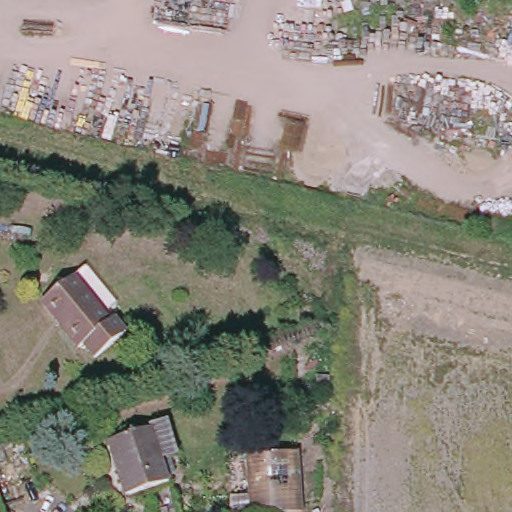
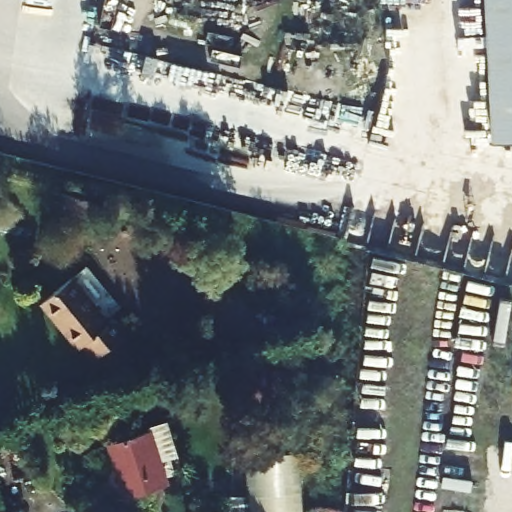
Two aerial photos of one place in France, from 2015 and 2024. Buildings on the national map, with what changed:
new [(488,0),(512,0),(512,139),(495,140),(488,0)]
unchanged [(92,199),(87,226),(51,219),(57,191),(92,199)]
unchanged [(75,276),(112,319),(116,315),(128,328),(95,357),(83,344),(77,349),(40,306),(75,276)]
unchanged [(166,427),(177,457),(158,464),(166,487),(126,500),(108,447),(147,434),(166,427)]
unchanged [(296,512),(223,512),(226,494),(242,497),(248,456),(302,462),(296,512)]

